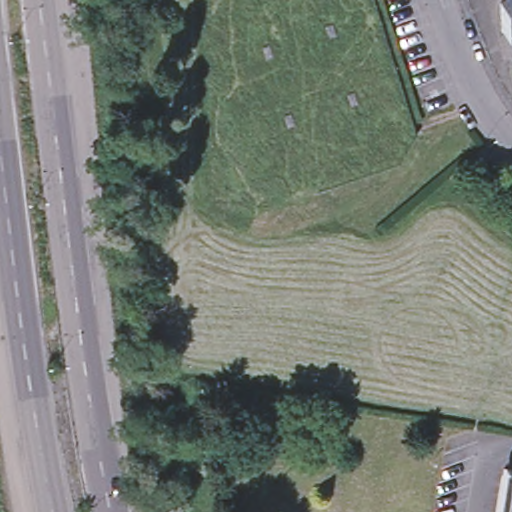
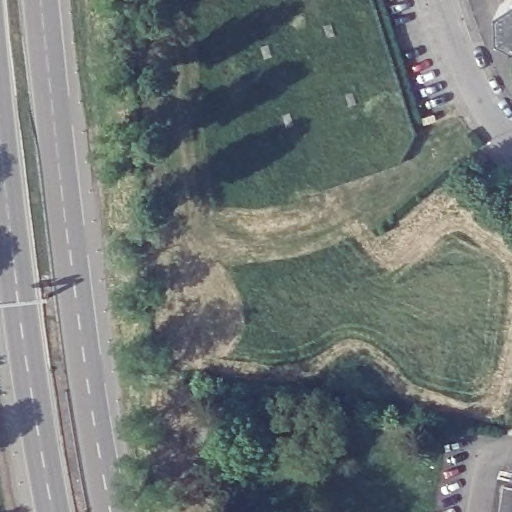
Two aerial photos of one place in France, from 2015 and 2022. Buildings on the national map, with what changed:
unchanged [(497,13),(512,1),(512,44),(501,39),(497,13)]
unchanged [(511,474),(512,474),(512,512),(503,512),(511,474)]

